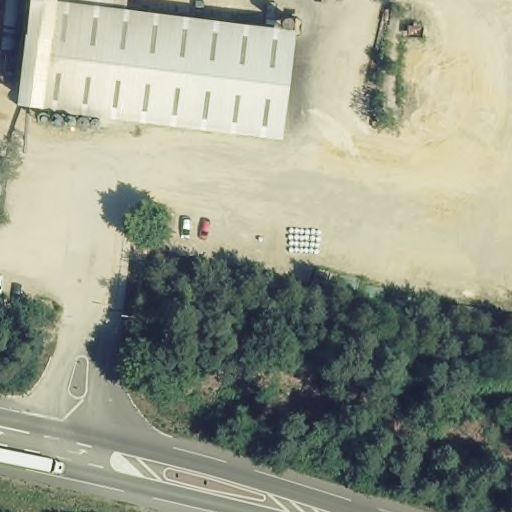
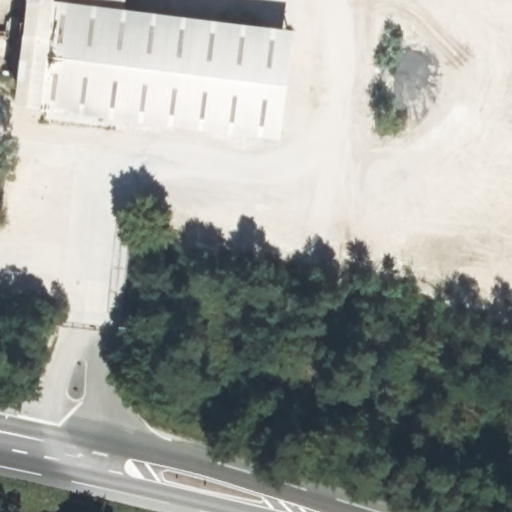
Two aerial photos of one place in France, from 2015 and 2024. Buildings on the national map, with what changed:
unchanged [(37,101),(11,96),(21,23),(23,0),(122,0),(122,1),(290,23),(277,131),(37,101)]

